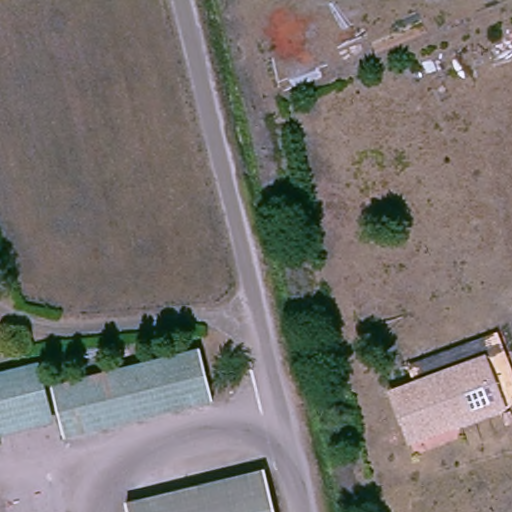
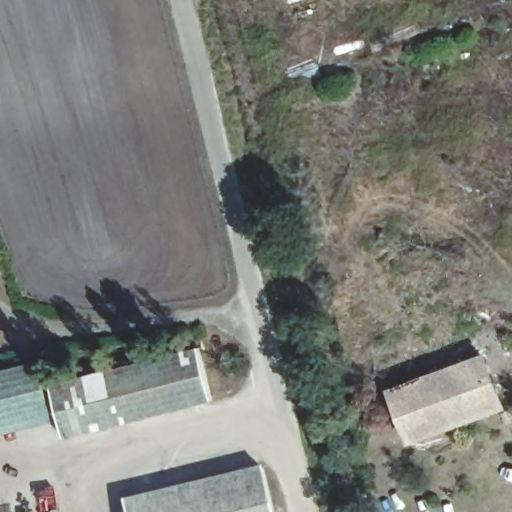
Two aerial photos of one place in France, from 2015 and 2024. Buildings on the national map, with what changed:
unchanged [(200,346),(216,400),(82,438),(64,440),(53,382),(69,378),(200,346)]
unchanged [(410,447),(390,400),(495,360),(512,411),(512,412),(410,447)]
unchanged [(0,374),(32,366),(34,375),(45,420),(0,431),(0,374)]
unchanged [(276,512),(127,512),(124,501),(263,467),(276,512)]

